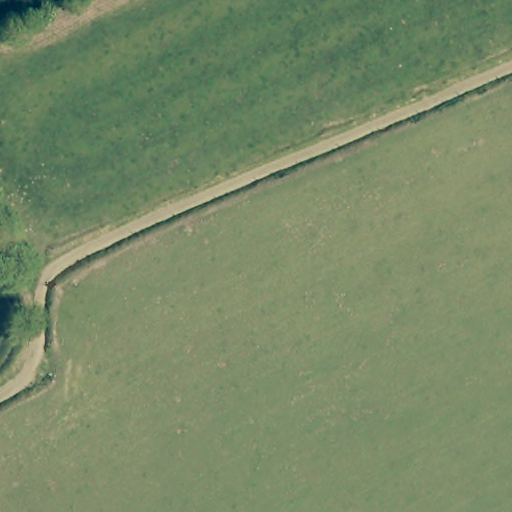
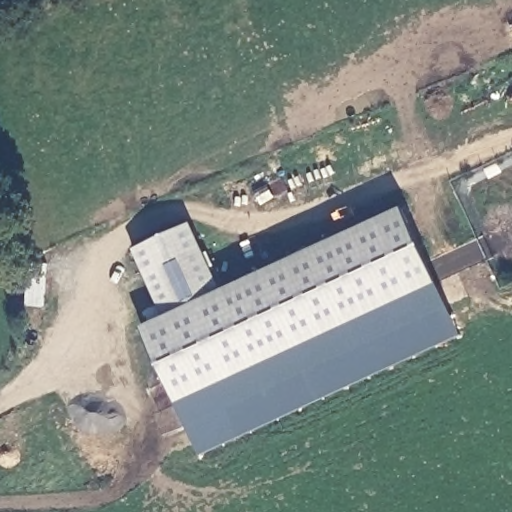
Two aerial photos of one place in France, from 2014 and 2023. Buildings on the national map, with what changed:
new [(189,429),(142,328),(166,317),(133,250),(191,223),(224,289),(402,208),(448,308),(189,429)]

